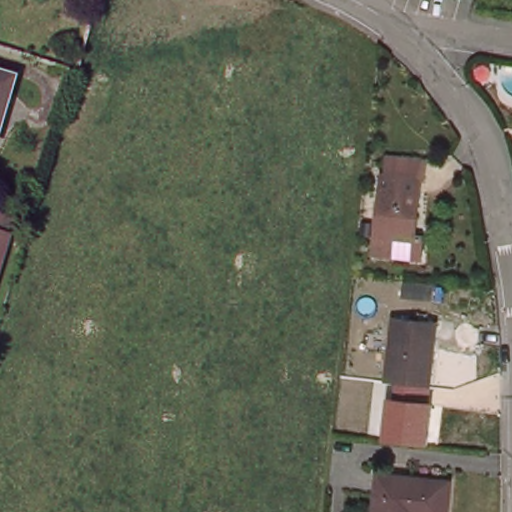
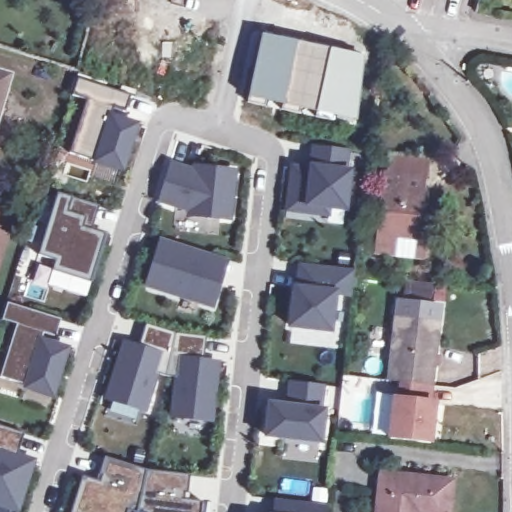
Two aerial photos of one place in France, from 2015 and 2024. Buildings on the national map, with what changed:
new [(260,33),(297,40),(283,106),(247,98),(260,33)]
new [(297,40),(328,47),(314,112),(283,106),(297,40)]
new [(328,47),(365,55),(356,122),(314,112),(328,47)]
unchanged [(0,110),(0,72),(12,75),(3,110),(0,110)]
new [(108,105),(107,108),(72,92),(78,76),(128,94),(122,109),(108,105)]
new [(75,139),(82,141),(82,143),(93,147),(107,108),(140,122),(122,173),(90,163),(87,172),(54,162),(59,147),(72,151),(75,139)]
new [(290,170),(309,173),(312,148),(347,152),(344,173),(349,174),(345,212),(328,210),(327,215),(305,212),(286,210),(288,192),(290,170)]
new [(170,159),(186,164),(185,169),(195,172),(195,163),(237,167),(231,216),(188,216),(189,212),(157,203),(170,159)]
unchanged [(381,233),(387,170),(425,174),(418,231),(427,232),(424,253),(415,252),(397,250),(380,248),(381,233)]
new [(97,208),(93,223),(90,232),(106,237),(92,285),(53,274),(57,264),(38,259),(57,196),(97,208)]
unchanged [(0,244),(0,218),(7,220),(0,244)]
new [(215,254),(228,257),(220,281),(212,308),(146,291),(162,240),(215,254)]
new [(295,263),(320,265),(352,269),(352,276),(350,295),(332,293),(328,330),(288,326),(292,287),(295,263)]
new [(30,388),(3,380),(18,327),(4,323),(10,307),(63,322),(57,339),(46,336),(43,343),(70,351),(57,393),(57,396),(30,388)]
unchanged [(400,316),(442,319),(435,385),(432,384),(398,380),(392,380),(400,316)]
new [(125,342),(144,347),(146,341),(142,340),(147,322),(177,331),(167,375),(158,372),(147,409),(108,397),(125,342)]
new [(177,331),(207,335),(205,353),(201,353),(200,359),(220,362),(213,419),(173,414),(177,376),(167,375),(177,331)]
new [(272,402),(290,404),(293,380),(325,383),(322,408),(326,408),(322,440),(268,434),(272,402)]
new [(432,384),(432,400),(437,401),(432,444),(387,439),(392,396),(398,397),(398,380),(432,384)]
new [(21,450),(19,457),(33,461),(18,508),(0,502),(0,425),(27,433),(21,450)]
unchanged [(379,512),(382,490),(385,472),(405,474),(455,479),(452,512),(379,512)]
new [(295,500),(328,503),(327,512),(273,512),(275,497),(295,500)]

